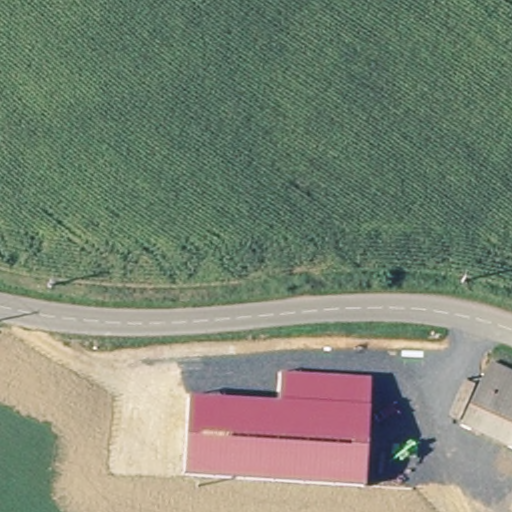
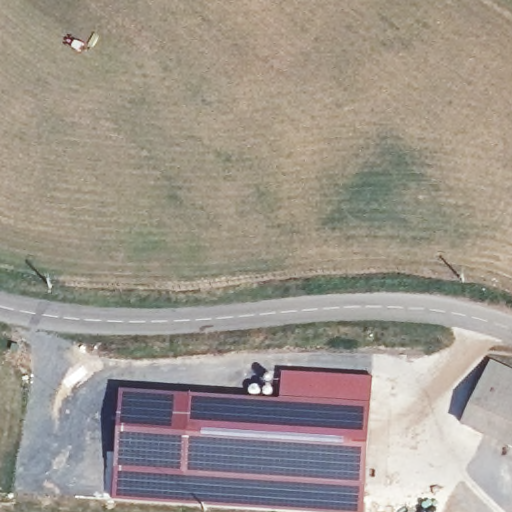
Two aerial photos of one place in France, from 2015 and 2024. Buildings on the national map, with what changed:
unchanged [(455,425),(480,358),(512,372),(512,414),(502,443),(455,425)]
unchanged [(189,395),(282,402),(283,373),(373,380),(366,487),(184,475),(189,395)]
new [(189,395),(184,475),(115,470),(121,390),(189,395)]
unchanged [(512,414),(512,447),(502,443),(512,414)]
new [(266,512),(112,501),(115,470),(184,475),(366,487),(364,512),(266,512)]

